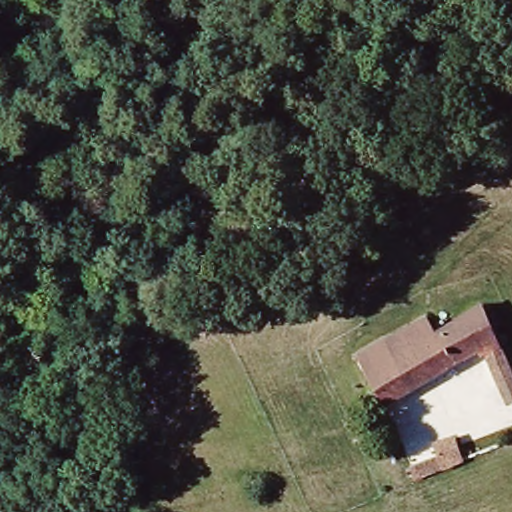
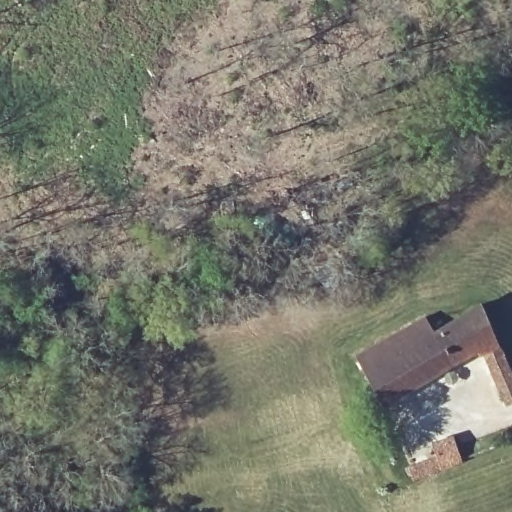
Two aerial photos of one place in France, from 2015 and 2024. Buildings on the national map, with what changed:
unchanged [(410,319),(417,334),(483,300),(512,366),(512,399),(508,401),(483,349),(380,401),(354,349),(410,319)]
unchanged [(436,451),(433,444),(452,436),(462,462),(414,481),(406,464),(436,451)]

